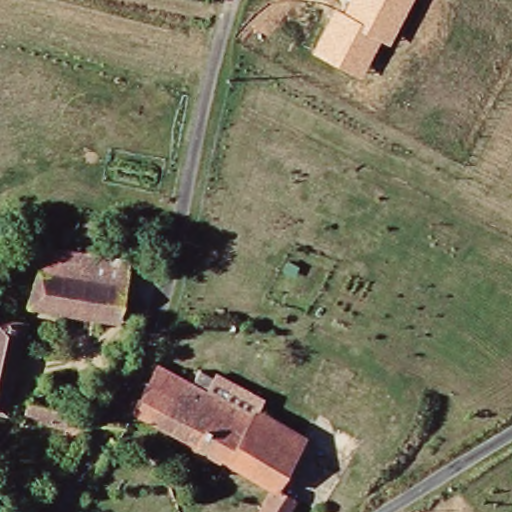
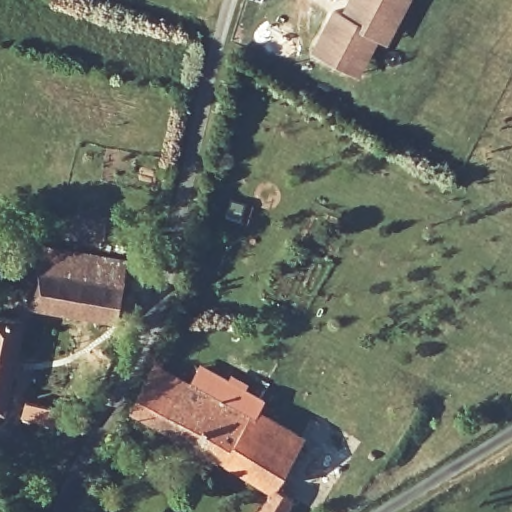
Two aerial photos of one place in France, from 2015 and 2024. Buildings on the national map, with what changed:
unchanged [(379,40),(361,76),(311,52),(334,6),(343,11),(348,0),(411,0),(389,44),(379,40)]
unchanged [(24,305),(36,246),(126,265),(113,324),(24,305)]
unchanged [(20,324),(1,417),(0,417),(0,320),(20,324)]
unchanged [(268,489),(134,404),(149,362),(246,415),(252,408),(300,437),(296,443),(271,486),(268,489)]
unchanged [(17,427),(20,406),(96,422),(87,441),(17,427)]
unchanged [(268,489),(271,486),(292,499),(284,512),(256,512),(268,489)]

